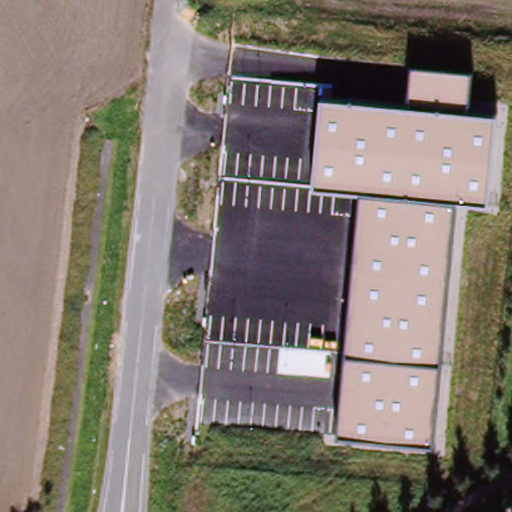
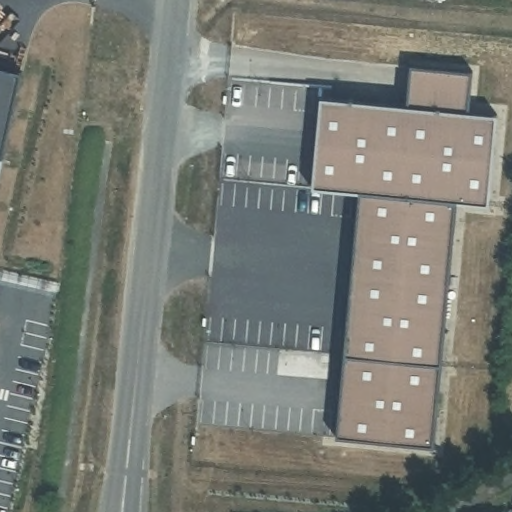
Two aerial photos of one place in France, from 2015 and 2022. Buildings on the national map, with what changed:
new [(20,71),(0,162),(0,66),(20,71)]
unchanged [(406,106),(411,67),(473,72),(469,112),(496,115),(488,203),(458,200),(434,446),(338,436),(361,192),(312,187),(320,98),(406,106)]

